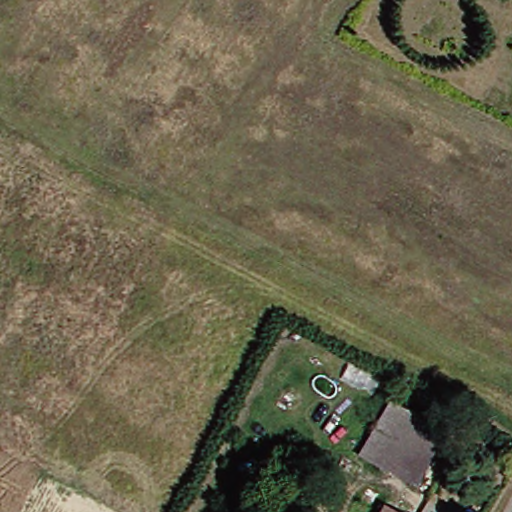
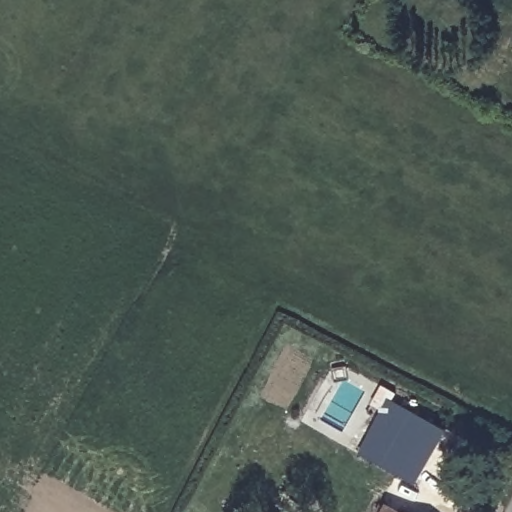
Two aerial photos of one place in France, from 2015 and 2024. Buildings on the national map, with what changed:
unchanged [(442,432),(417,484),(355,456),(384,401),(442,432)]
unchanged [(377,511),(379,512),(377,512),(377,511)]

